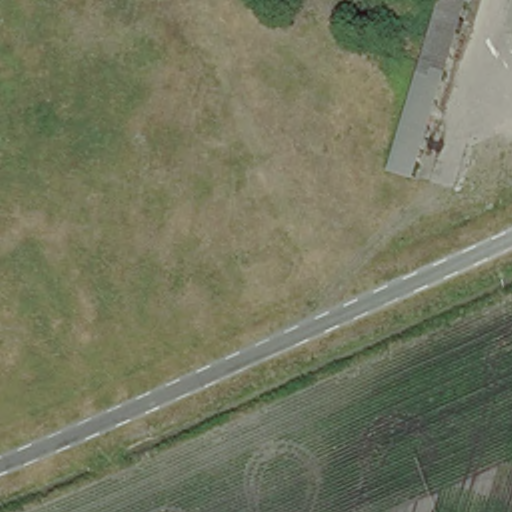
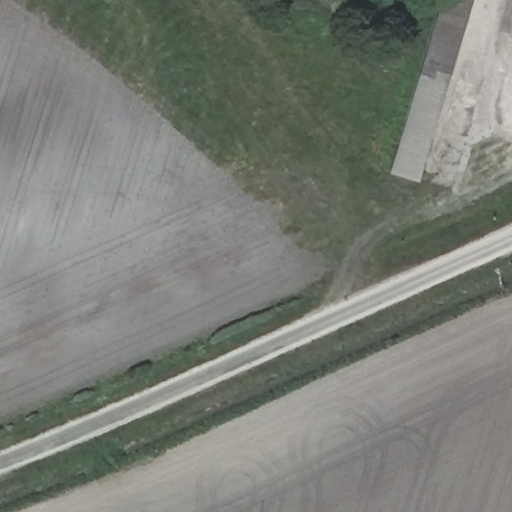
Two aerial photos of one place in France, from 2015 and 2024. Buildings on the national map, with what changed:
unchanged [(391,165),(442,0),(471,0),(418,174),(391,165)]

